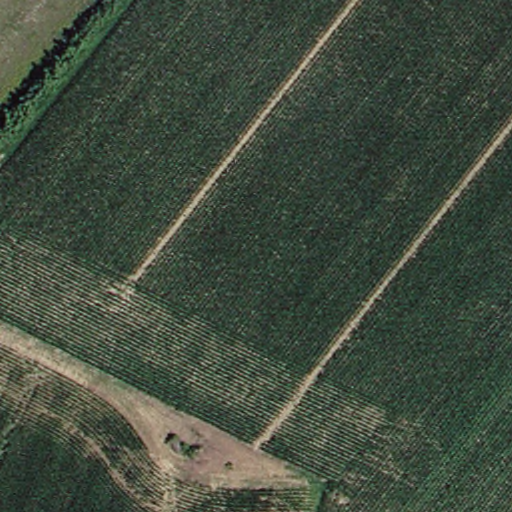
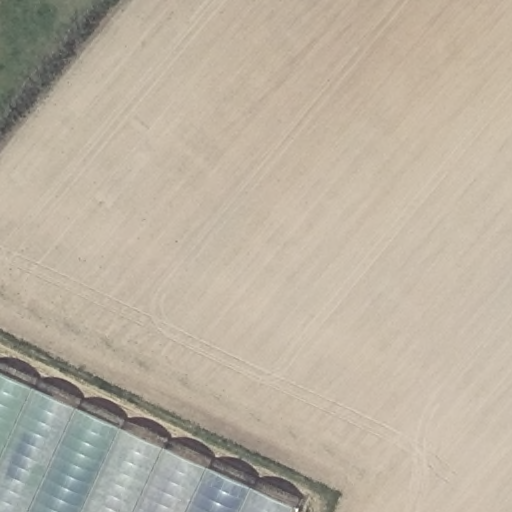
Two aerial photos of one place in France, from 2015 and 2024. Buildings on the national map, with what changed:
new [(0,512),(0,370),(298,506),(295,512),(0,512)]

